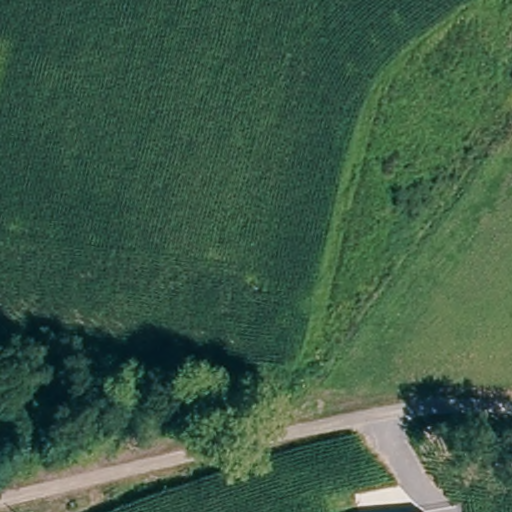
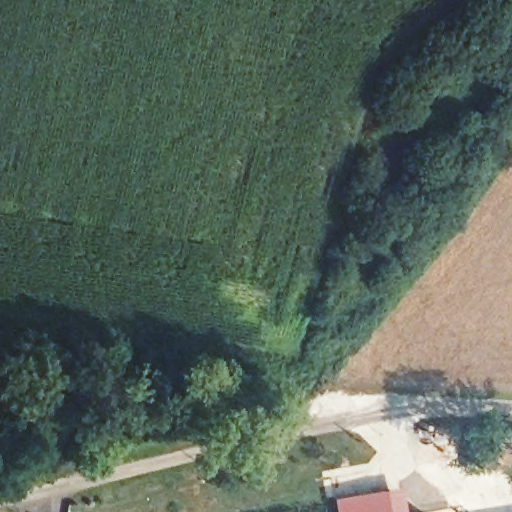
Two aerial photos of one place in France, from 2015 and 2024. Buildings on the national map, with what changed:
new [(400,486),(404,512),(336,512),(333,499),(400,486)]

